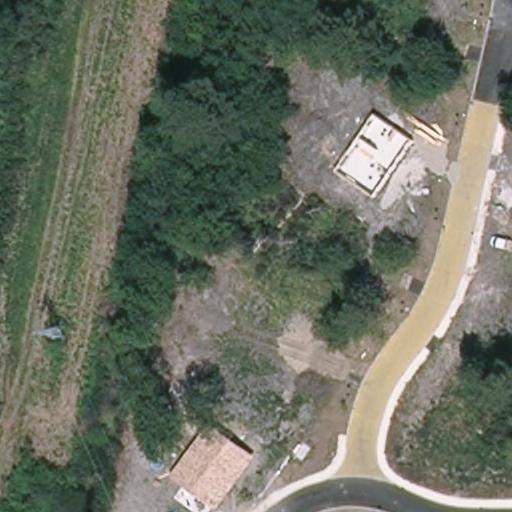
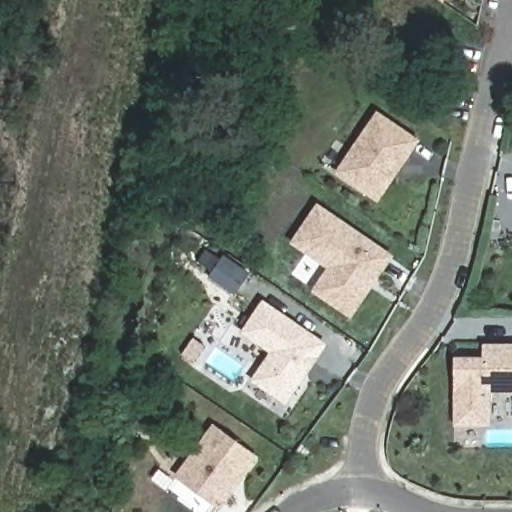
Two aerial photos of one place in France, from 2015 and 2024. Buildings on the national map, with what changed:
unchanged [(377,196),(340,170),(377,114),(416,139),(377,196)]
new [(351,320),(311,291),(327,268),(290,244),(317,204),(395,256),(351,320)]
new [(287,406),(251,381),(270,353),(241,333),(263,300),(328,343),(287,406)]
new [(489,353),(489,348),(505,348),(505,347),(512,347),(512,391),(492,391),(492,424),(462,424),(460,362),(489,361),(489,353)]
unchanged [(217,511),(176,476),(216,423),(259,457),(217,511)]

